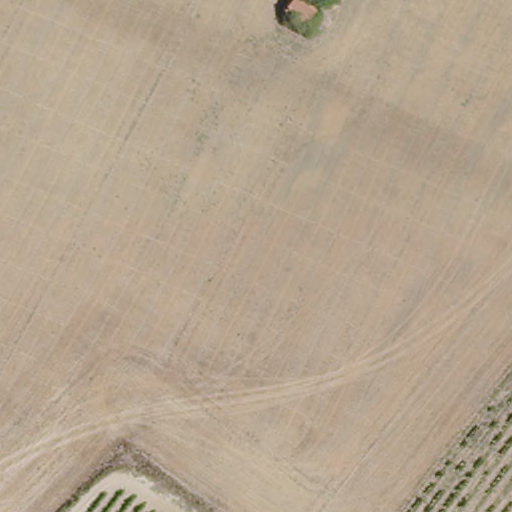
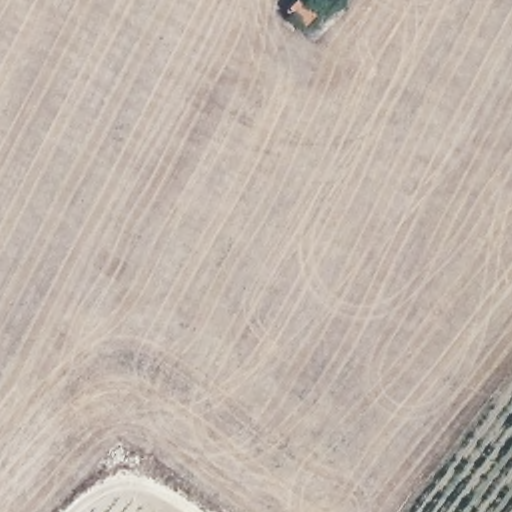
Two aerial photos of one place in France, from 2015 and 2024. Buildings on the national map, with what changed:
unchanged [(302,26),(284,12),(294,0),(316,0),(321,4),(302,26)]

